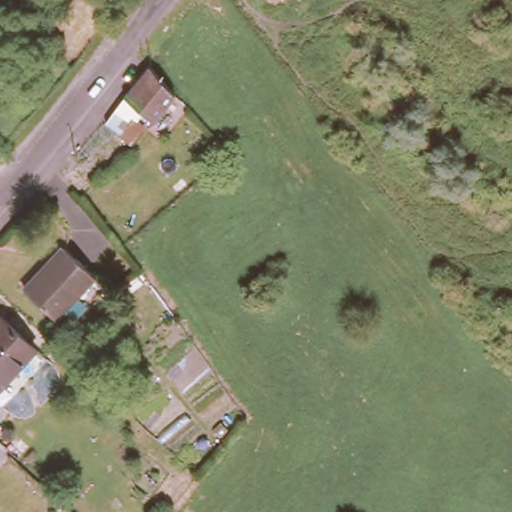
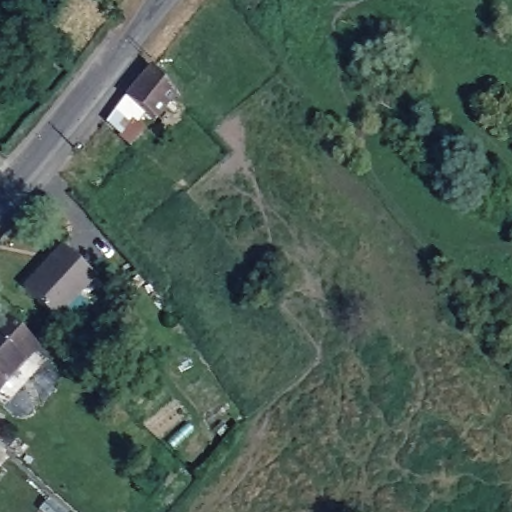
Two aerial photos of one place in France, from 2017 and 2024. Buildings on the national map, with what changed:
unchanged [(161,116),(146,103),(138,111),(150,122),(134,141),(107,118),(154,61),(167,76),(181,90),(161,116)]
unchanged [(92,272),(54,312),(23,285),(61,242),(92,272)]
unchanged [(0,378),(0,315),(31,343),(0,378)]

